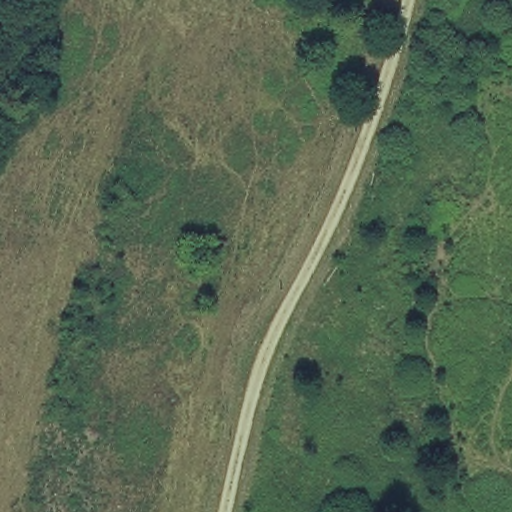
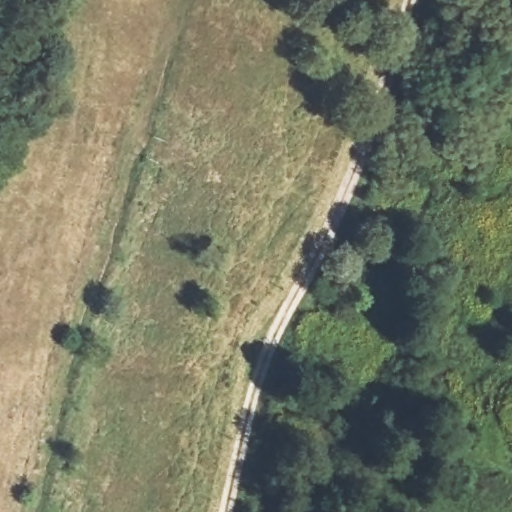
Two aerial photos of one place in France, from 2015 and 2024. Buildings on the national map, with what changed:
[]

